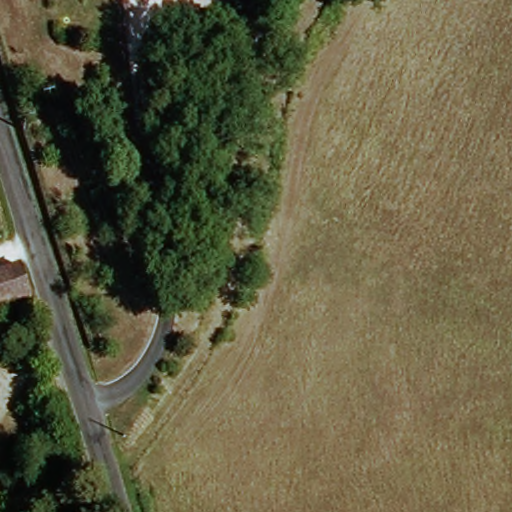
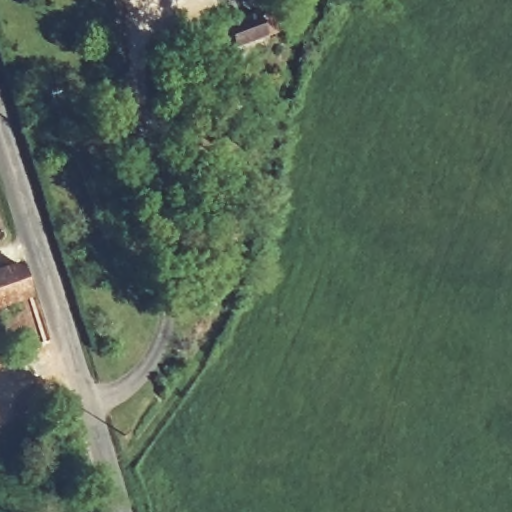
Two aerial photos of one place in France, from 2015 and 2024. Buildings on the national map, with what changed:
unchanged [(233,55),(224,28),(257,18),(259,24),(269,20),(274,38),(264,41),(266,45),(233,55)]
unchanged [(0,224),(0,217),(2,223),(0,224)]
unchanged [(39,299),(0,313),(0,277),(29,268),(39,299)]

